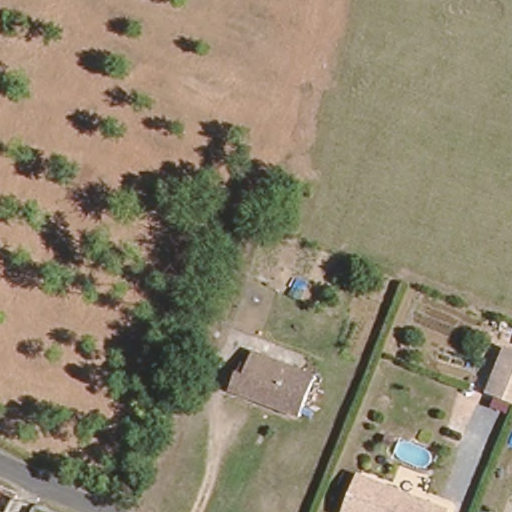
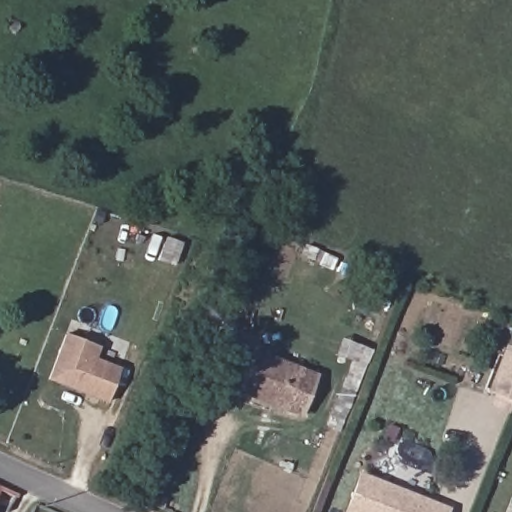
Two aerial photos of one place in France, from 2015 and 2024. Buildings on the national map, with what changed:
new [(108,403),(46,380),(65,333),(100,346),(96,358),(122,367),(108,403)]
unchanged [(504,352),(507,345),(512,346),(512,395),(491,386),(504,352)]
unchanged [(310,372),(295,412),(227,385),(234,369),(240,370),(250,347),(310,372)]
unchanged [(445,505),(442,512),(353,512),(345,509),(360,472),(445,505)]

